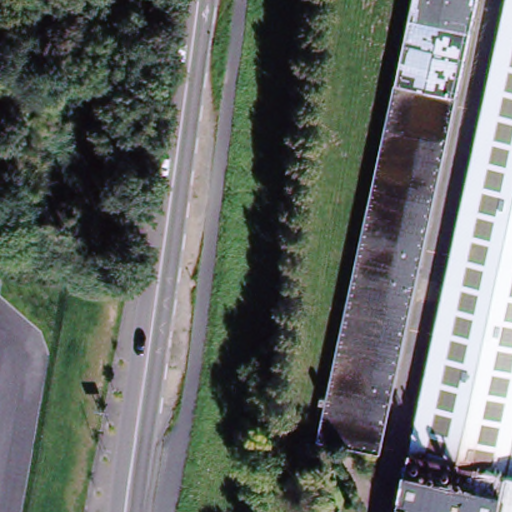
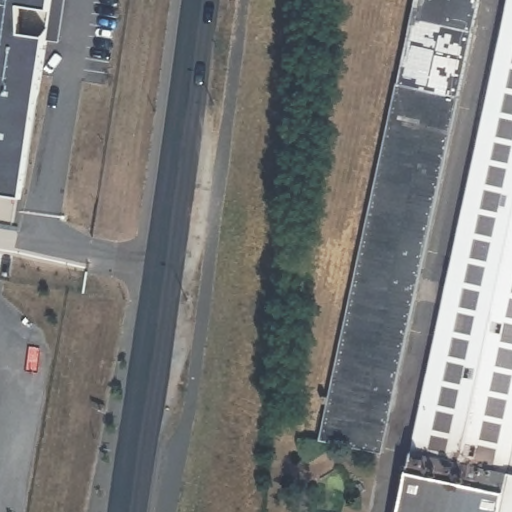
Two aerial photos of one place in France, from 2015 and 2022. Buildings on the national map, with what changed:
new [(19,199),(0,196),(0,0),(48,0),(46,10),(43,39),(19,199)]
unchanged [(414,0),(477,0),(378,456),(319,444),(414,0)]
unchanged [(507,512),(401,512),(511,0),(512,0),(512,487),(507,512)]
unchanged [(507,512),(512,487),(512,512),(507,512)]

